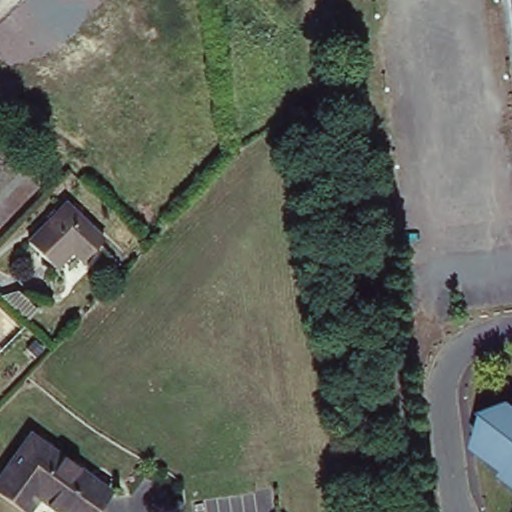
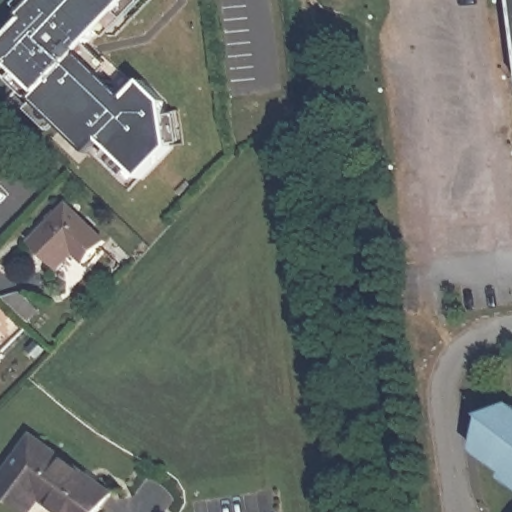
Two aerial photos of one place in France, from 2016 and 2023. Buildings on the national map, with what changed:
demolished [(139,138),(116,162),(80,128),(71,137),(19,86),(26,79),(0,55),(0,35),(25,9),(21,5),(26,0),(118,0),(121,3),(106,18),(124,36),(89,72),(111,93),(119,86),(149,114),(131,131),(139,138)]
new [(19,13),(31,0),(124,0),(75,51),(123,95),(139,79),(163,99),(168,147),(140,174),(99,136),(85,147),(32,97),(38,91),(0,55),(0,45),(26,19),(19,13)]
unchanged [(508,0),(512,0),(512,31),(508,0)]
unchanged [(83,259),(71,249),(57,264),(29,237),(66,198),(105,235),(83,259)]
unchanged [(38,312),(25,325),(8,309),(0,302),(0,298),(18,293),(38,312)]
unchanged [(512,485),(496,472),(497,468),(471,445),(475,439),(471,435),(482,421),(479,417),(484,409),(488,412),(495,405),(499,409),(505,403),(512,408),(512,485)]
unchanged [(60,512),(40,497),(29,512),(27,512),(0,492),(0,478),(31,435),(110,491),(95,512),(60,512)]

